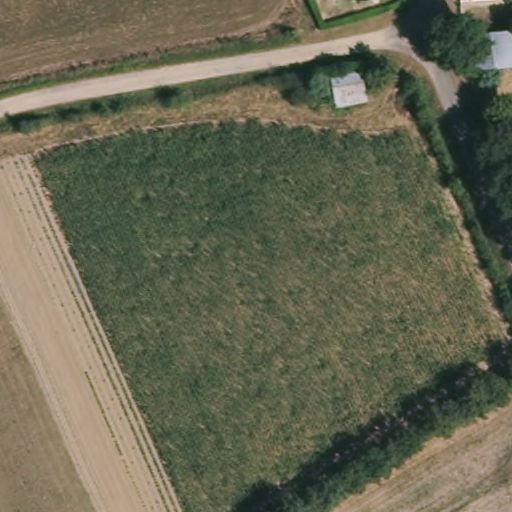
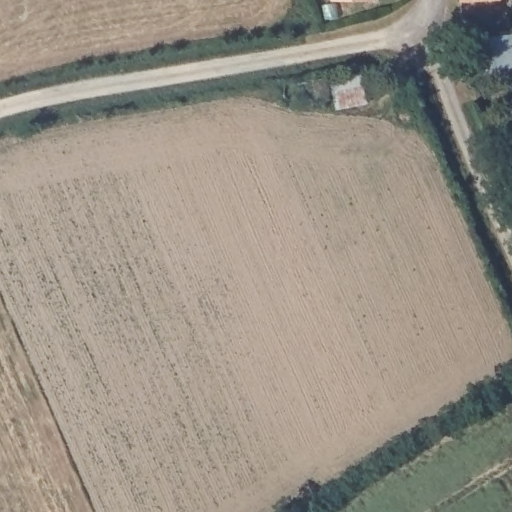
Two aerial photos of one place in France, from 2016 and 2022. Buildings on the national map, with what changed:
unchanged [(465,1),(465,0),(474,0),(465,1)]
unchanged [(512,36),(512,68),(475,73),(471,42),(512,36)]
unchanged [(364,71),(369,105),(337,112),(336,107),(318,108),(315,80),(364,71)]

